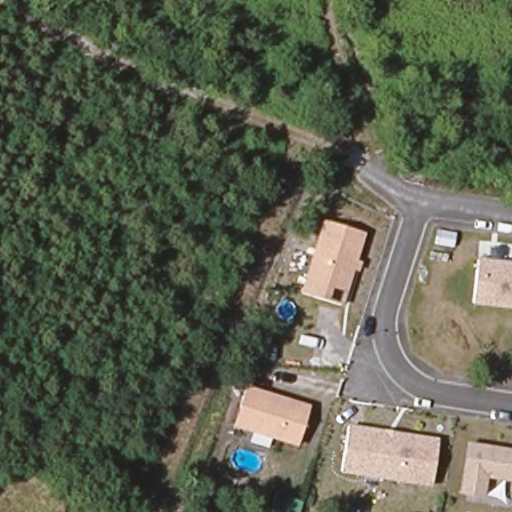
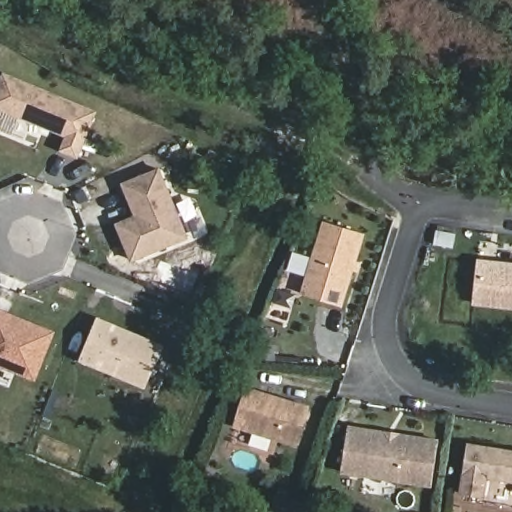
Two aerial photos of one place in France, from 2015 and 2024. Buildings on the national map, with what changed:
new [(59,151),(65,136),(0,110),(0,77),(2,71),(98,111),(78,159),(59,151)]
new [(131,263),(115,224),(135,216),(121,183),(160,166),(189,238),(131,263)]
unchanged [(358,260),(363,263),(359,274),(355,273),(344,307),(299,293),(323,219),(367,234),(358,260)]
unchanged [(472,305),(478,258),(512,262),(512,310),(472,305)]
new [(0,368),(0,308),(56,332),(36,383),(0,368)]
new [(146,389),(80,362),(97,317),(164,344),(146,389)]
unchanged [(299,449),(232,428),(244,385),(311,406),(299,449)]
unchanged [(341,474),(348,424),(439,439),(432,489),(341,474)]
unchanged [(488,478),(485,499),(458,497),(465,442),(512,449),(512,481),(488,478)]

